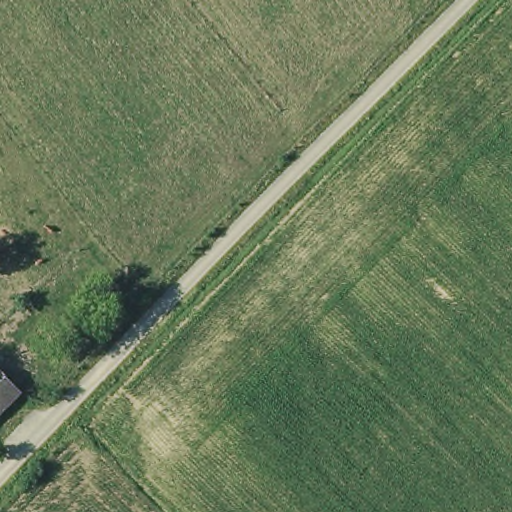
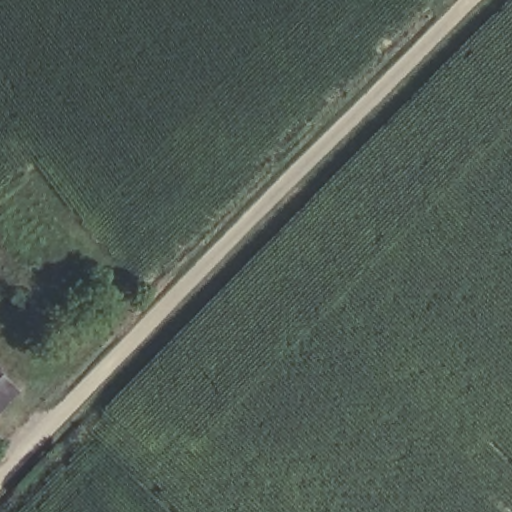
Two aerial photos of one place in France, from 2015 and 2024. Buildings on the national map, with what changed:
unchanged [(0,422),(0,372),(25,399),(0,422)]

